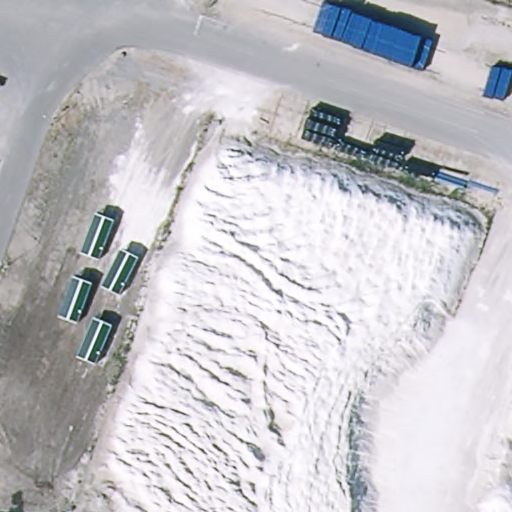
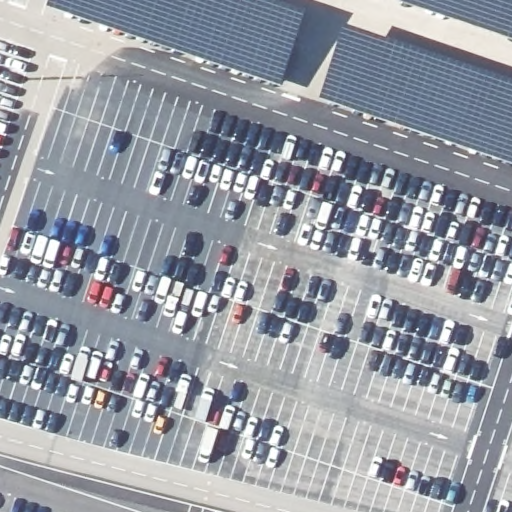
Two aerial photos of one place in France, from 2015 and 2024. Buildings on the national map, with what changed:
new [(280,86),(47,7),(49,0),(264,0),(305,14),(280,86)]
new [(395,0),(512,0),(512,40),(395,0)]
new [(512,84),(512,165),(318,99),(343,26),(512,84)]

